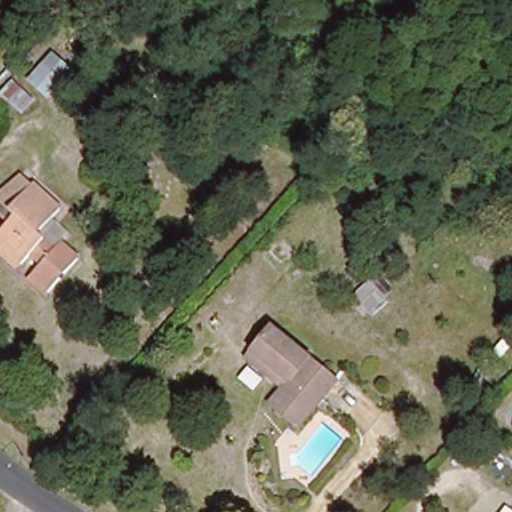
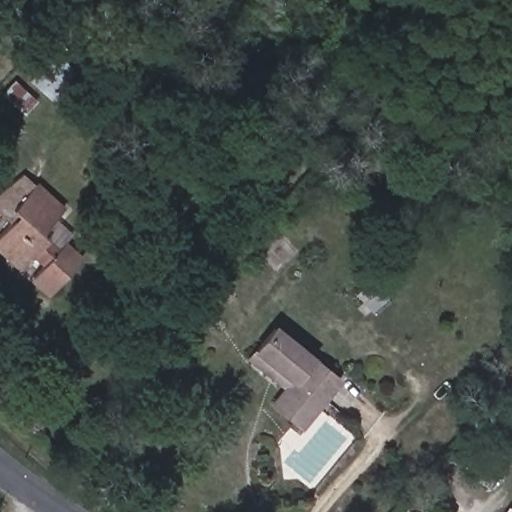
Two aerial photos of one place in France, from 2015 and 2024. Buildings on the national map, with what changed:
unchanged [(53,252),(59,246),(75,264),(43,296),(27,279),(39,267),(29,257),(19,267),(0,247),(0,233),(14,222),(6,212),(0,216),(0,215),(0,194),(24,176),(36,189),(60,213),(37,235),(53,252)]
unchanged [(335,386),(301,432),(274,412),(293,385),(256,358),(272,336),(335,386)]

